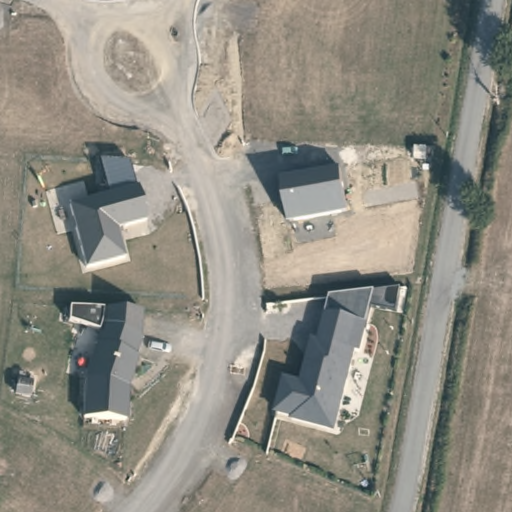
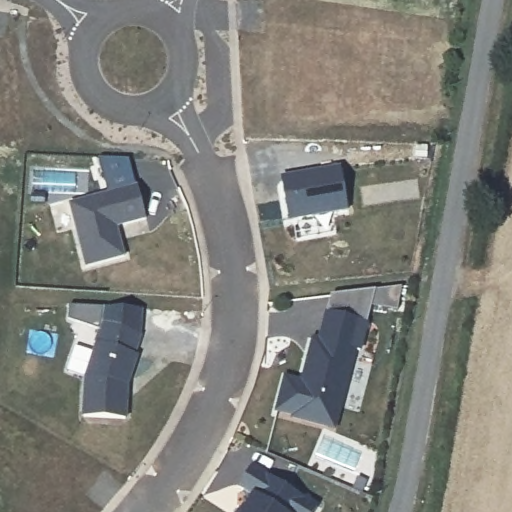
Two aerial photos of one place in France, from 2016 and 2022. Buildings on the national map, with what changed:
unchanged [(101,158),(131,161),(138,186),(110,194),(101,158)]
unchanged [(290,221),(283,177),(342,168),(349,212),(290,221)]
unchanged [(146,221),(120,226),(125,257),(86,268),(69,206),(138,186),(146,221)]
unchanged [(302,381),(315,338),(320,340),(327,309),(369,322),(335,433),(274,415),(285,378),(302,381)]
unchanged [(124,420),(82,418),(85,379),(96,344),(94,344),(100,324),(141,337),(135,356),(136,356),(130,378),(127,387),(124,420)]
new [(314,512),(230,512),(241,494),(233,489),(250,464),(318,506),(314,512)]

